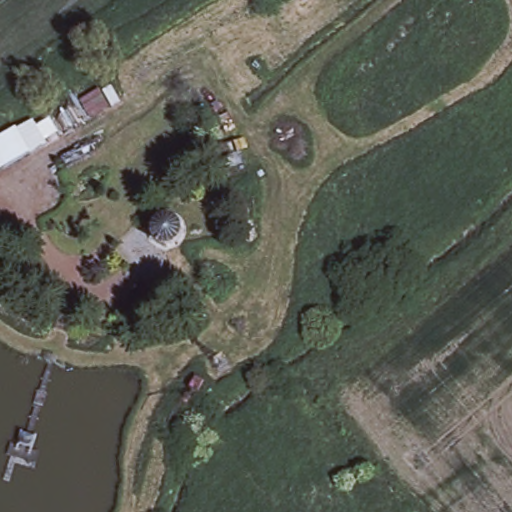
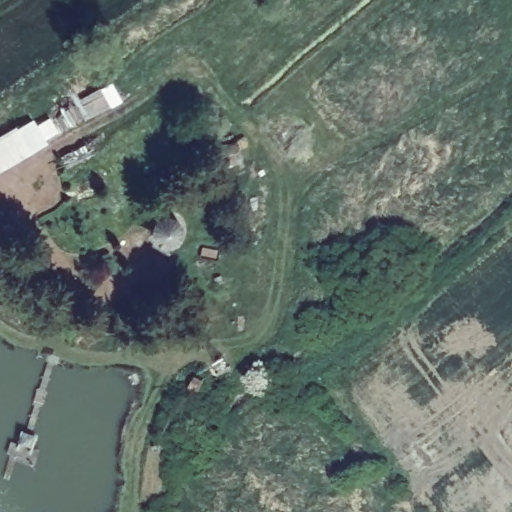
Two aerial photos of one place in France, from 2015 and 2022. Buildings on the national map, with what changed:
unchanged [(11,125),(32,154),(0,171),(0,131),(11,125)]
unchanged [(155,219),(160,216),(165,215),(171,216),(177,220),(181,227),(182,235),(180,241),(175,247),(165,249),(157,245),(152,237),(150,229),(152,222),(155,219)]

